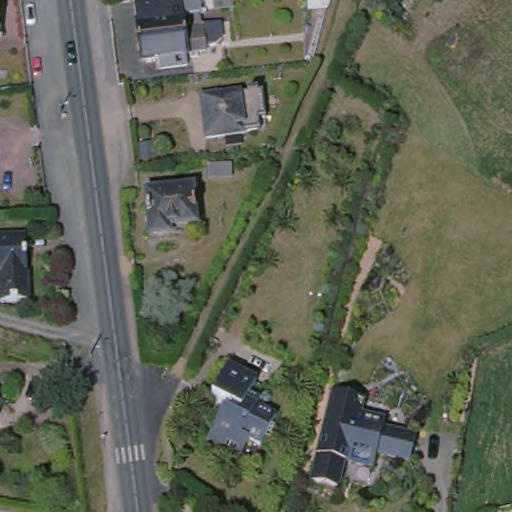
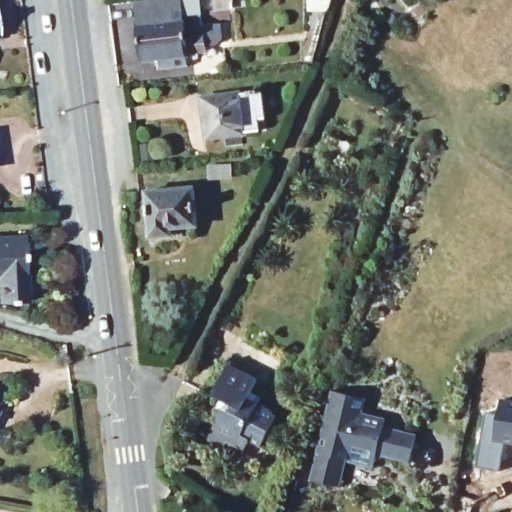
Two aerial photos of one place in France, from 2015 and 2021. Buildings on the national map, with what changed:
unchanged [(191,56),(143,63),(136,1),(149,0),(184,0),(186,17),(202,16),(203,25),(205,28),(207,51),(199,53),(200,59),(192,60),(191,56)]
unchanged [(0,36),(0,24),(1,36),(0,36)]
unchanged [(203,101),(264,93),(267,119),(261,121),(262,131),(208,140),(203,101)]
unchanged [(148,189),(195,185),(198,222),(172,226),(173,232),(153,235),(148,189)]
unchanged [(31,303),(3,305),(1,277),(0,277),(0,240),(26,239),(31,303)]
unchanged [(226,402),(213,395),(228,366),(256,379),(251,392),(260,396),(256,404),(260,407),(262,404),(274,410),(273,413),(276,416),(273,424),(276,425),(270,437),(267,436),(261,446),(250,440),(241,457),(208,440),(226,402)]
unchanged [(354,394),(366,397),(365,404),(363,412),(388,417),(386,424),(402,427),(419,431),(414,458),(398,454),(381,451),(378,466),(349,460),(344,487),(315,481),(333,393),(333,390),(354,394)]
new [(484,415),(498,418),(500,403),(512,405),(512,445),(504,443),(499,474),(476,471),(484,415)]
unchanged [(0,412),(0,404),(3,405),(0,412)]

